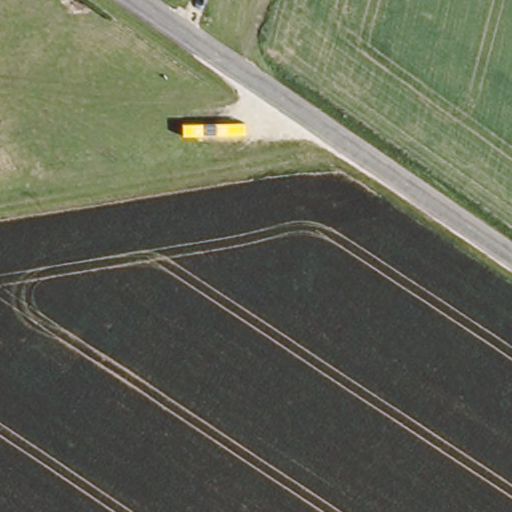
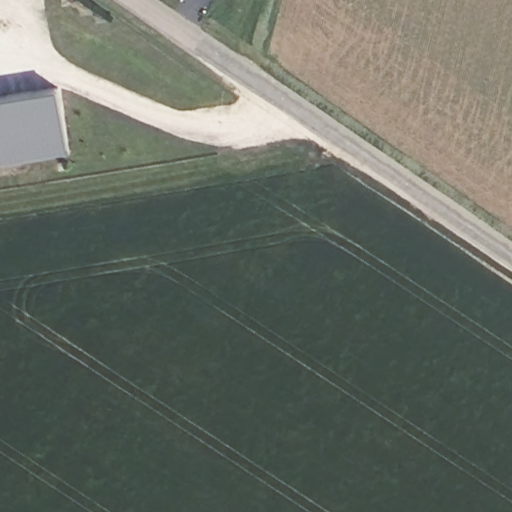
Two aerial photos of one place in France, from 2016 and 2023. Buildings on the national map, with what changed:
new [(57,87),(68,154),(0,165),(0,96),(57,87)]

